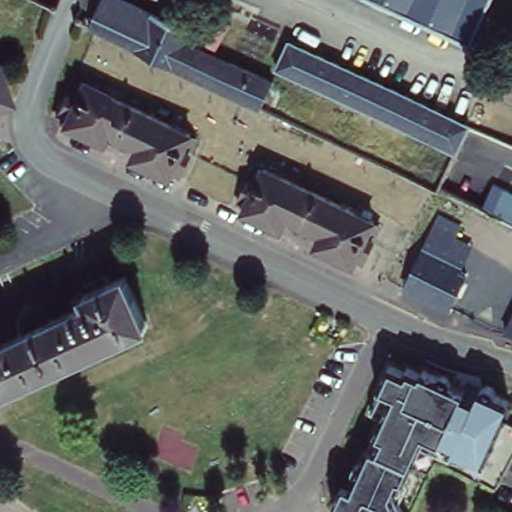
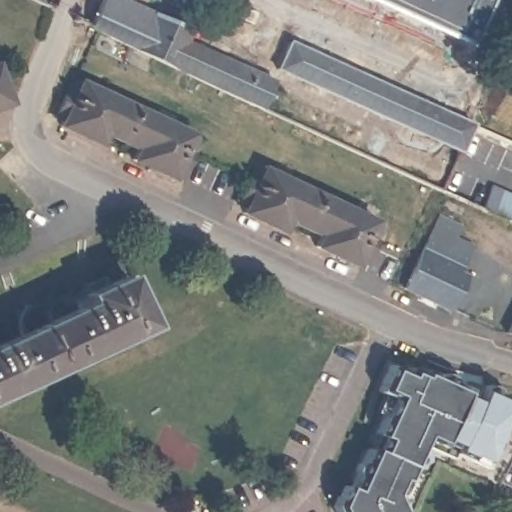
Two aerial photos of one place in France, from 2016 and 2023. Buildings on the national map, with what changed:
unchanged [(124,0),(191,30),(185,41),(174,68),(90,26),(102,0),(124,0)]
unchanged [(375,0),(492,0),(471,44),(375,0)]
unchanged [(231,62),(220,89),(174,68),(185,41),(231,62)]
unchanged [(295,41),(475,124),(461,152),(282,69),(295,41)]
unchanged [(231,62),(275,82),(262,109),(220,89),(231,62)]
unchanged [(1,64),(16,103),(0,109),(0,64),(1,64)]
unchanged [(196,154),(185,175),(179,172),(176,178),(138,160),(142,149),(109,134),(104,144),(65,125),(67,120),(61,116),(71,95),(79,79),(86,83),(196,134),(204,138),(196,154)]
unchanged [(374,235),(364,257),(357,254),(355,260),(315,242),(320,231),(286,215),(281,226),(244,208),(246,202),(240,199),(250,177),(257,160),(263,164),(375,216),(381,219),(374,235)]
unchanged [(512,195),(512,224),(496,217),(507,193),(512,195)]
unchanged [(461,231),(456,242),(475,251),(462,277),(467,279),(450,315),(405,294),(439,220),(461,231)]
unchanged [(76,309),(72,300),(84,295),(126,276),(149,326),(0,395),(0,344),(76,309)]
unchanged [(512,329),(506,328),(512,317),(512,329)]
unchanged [(390,365),(405,373),(407,368),(422,374),(423,370),(438,377),(445,374),(450,377),(452,383),(465,389),(469,383),(481,388),(488,386),(494,388),(496,394),(510,401),(500,421),(512,426),(512,457),(496,486),(434,457),(408,512),(335,512),(333,507),(337,497),(342,486),(350,489),(355,477),(353,470),(355,464),(362,463),(368,449),(375,435),(391,398),(377,392),(390,365)]

